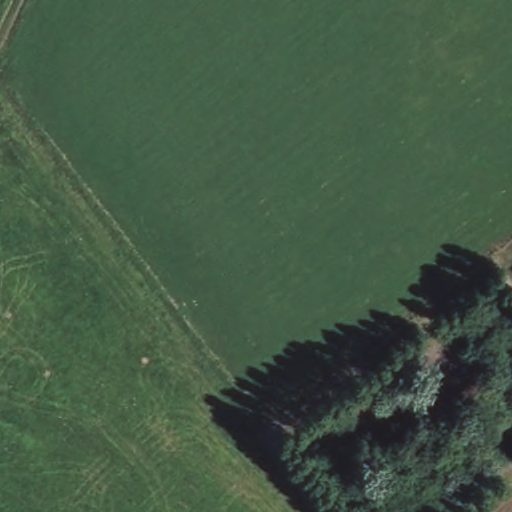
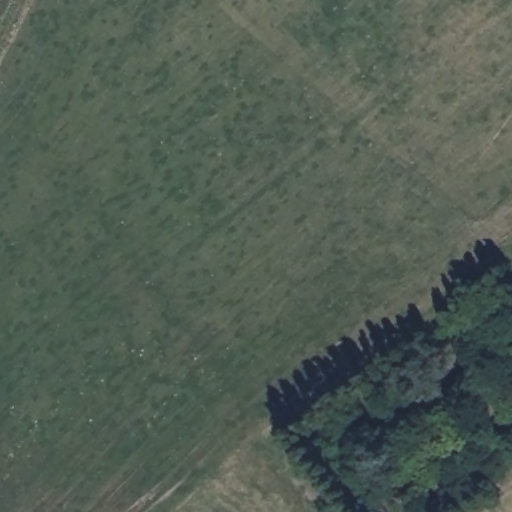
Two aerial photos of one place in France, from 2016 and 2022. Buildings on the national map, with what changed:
[]

